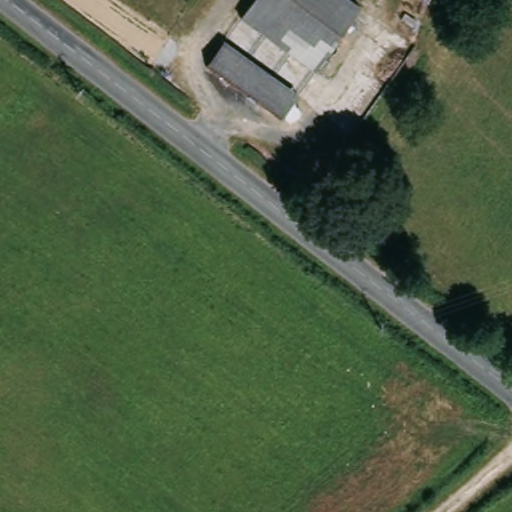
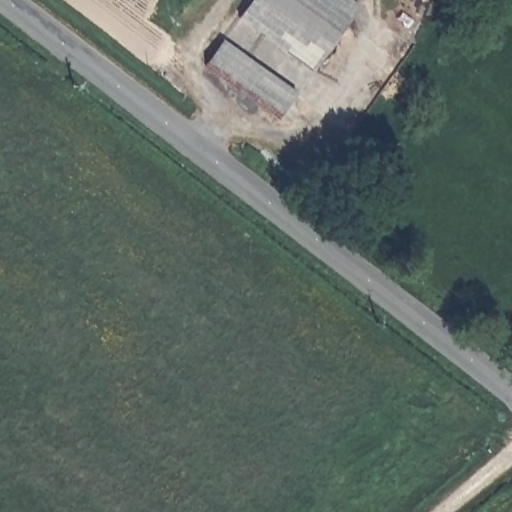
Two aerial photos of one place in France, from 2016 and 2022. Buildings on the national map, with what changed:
unchanged [(310,71),(252,25),(237,14),(248,0),(347,0),(359,10),(320,58),(310,71)]
unchanged [(297,99),(281,119),(229,76),(209,60),(224,41),(242,55),(297,99)]

